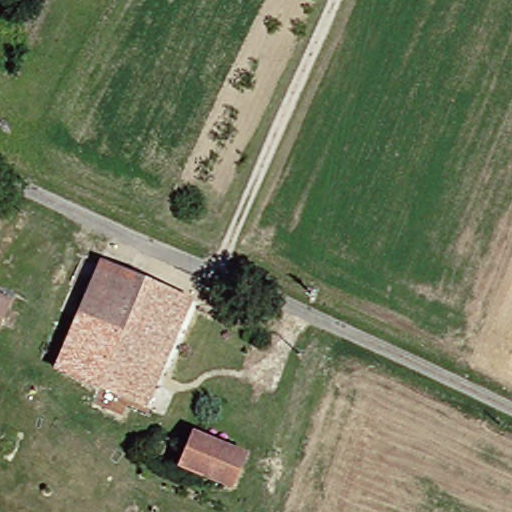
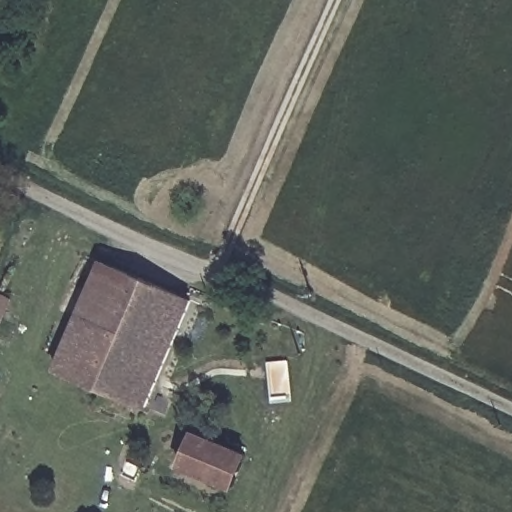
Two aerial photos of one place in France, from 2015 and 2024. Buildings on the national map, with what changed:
unchanged [(97,259),(184,299),(136,403),(49,365),(97,259)]
unchanged [(0,323),(0,291),(12,296),(0,323)]
unchanged [(184,433),(240,458),(227,486),(170,461),(184,433)]

